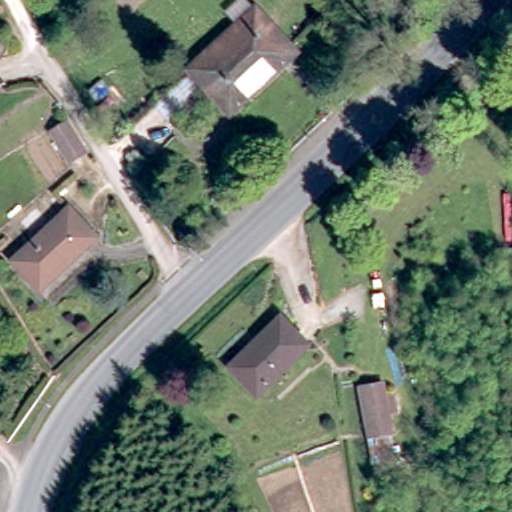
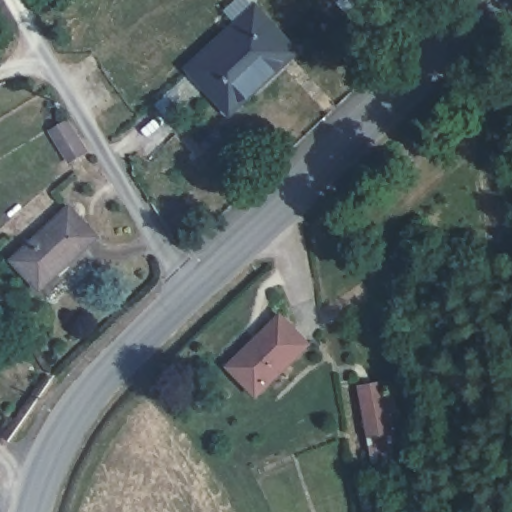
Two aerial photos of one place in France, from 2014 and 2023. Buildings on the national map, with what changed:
unchanged [(209,90),(188,69),(250,7),(291,48),(244,95),(230,109),(209,90)]
unchanged [(49,130),(68,120),(85,146),(68,157),(49,130)]
unchanged [(100,231),(40,290),(13,260),(71,202),(100,231)]
unchanged [(258,389),(229,362),(279,311),(308,342),(258,389)]
unchanged [(384,379),(398,448),(369,453),(354,384),(384,379)]

